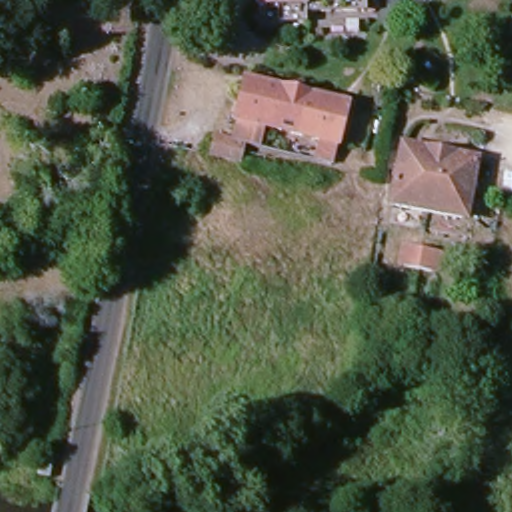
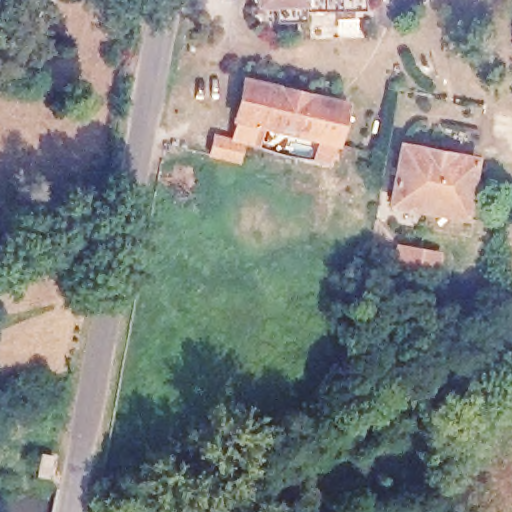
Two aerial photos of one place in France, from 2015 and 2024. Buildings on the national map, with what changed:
unchanged [(302,4),(302,14),(276,14),(276,0),(361,0),(362,2),(302,4)]
unchanged [(512,30),(512,40),(508,40),(508,30),(512,30)]
unchanged [(247,84),(349,110),(340,149),(237,124),(247,84)]
unchanged [(340,149),(334,170),(249,149),(232,144),(237,124),(340,149)]
unchanged [(184,150),(189,133),(217,140),(213,157),(184,150)]
unchanged [(474,165),(463,221),(389,208),(399,151),(474,165)]

